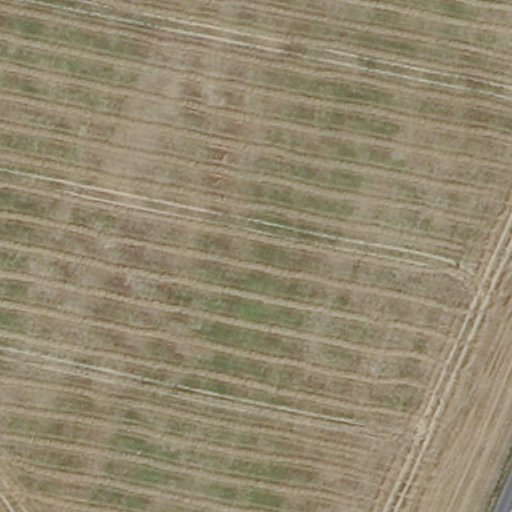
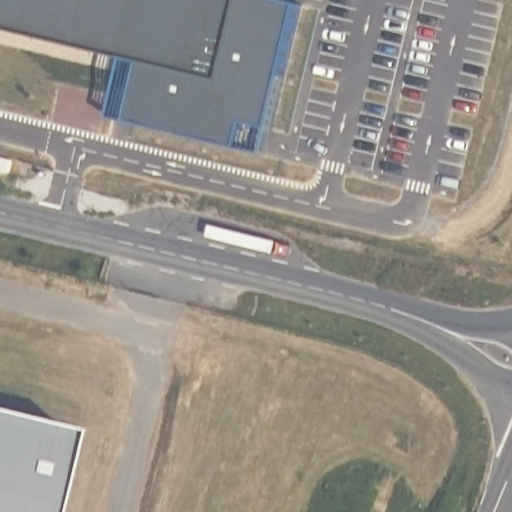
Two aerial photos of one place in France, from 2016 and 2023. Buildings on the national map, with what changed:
new [(262,154),(108,116),(120,64),(0,34),(0,0),(303,0),(262,154)]
new [(11,172),(0,169),(0,158),(14,161),(11,172)]
new [(44,512),(0,512),(0,409),(65,425),(44,512)]

